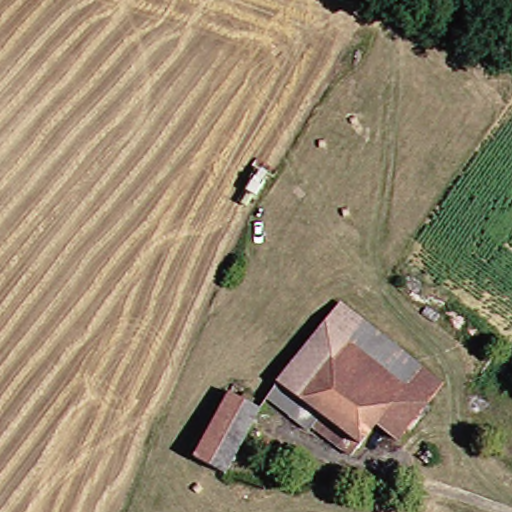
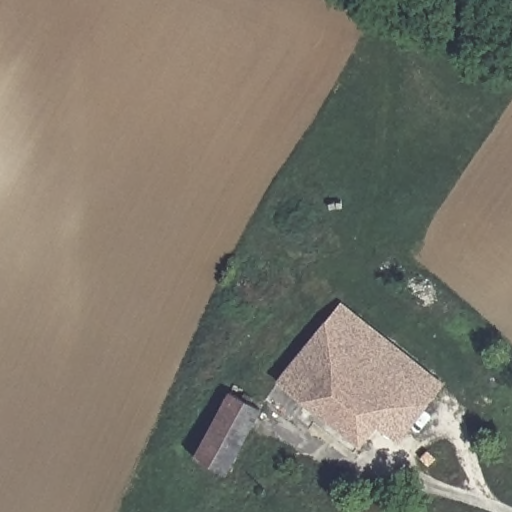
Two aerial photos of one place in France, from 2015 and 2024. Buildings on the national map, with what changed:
unchanged [(316,419),(325,410),(289,377),(353,302),(433,368),(419,386),(383,425),(366,446),(356,455),(316,419)]
unchanged [(438,402),(403,442),(383,425),(419,386),(438,402)]
unchanged [(258,408),(221,475),(191,458),(224,395),(258,408)]

